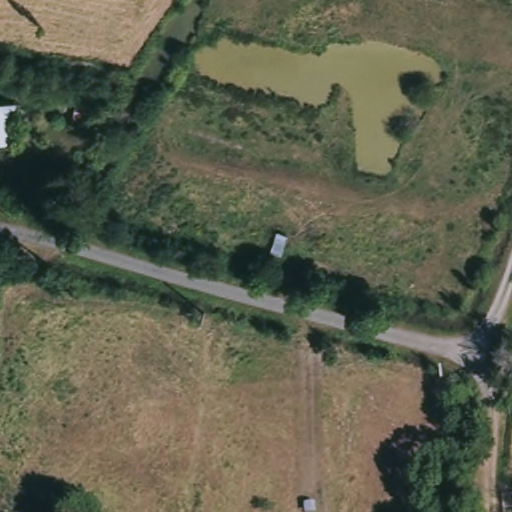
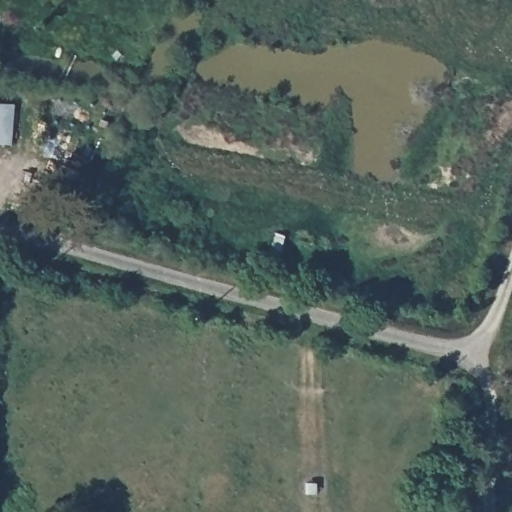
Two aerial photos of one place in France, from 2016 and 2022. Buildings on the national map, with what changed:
unchanged [(146,81),(141,105),(113,99),(118,75),(146,81)]
unchanged [(23,104),(17,144),(0,142),(0,100),(23,104)]
unchanged [(54,503),(54,512),(21,512),(21,502),(54,503)]

